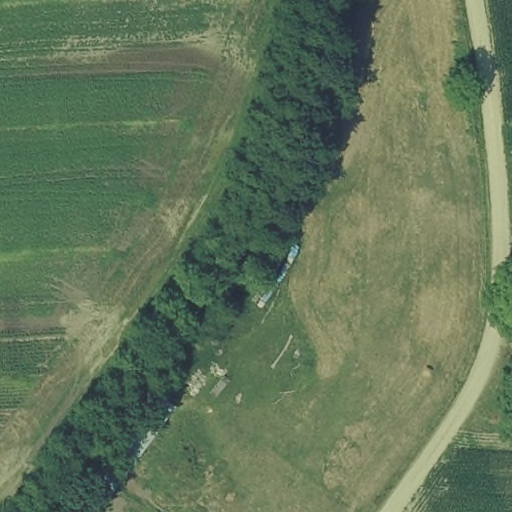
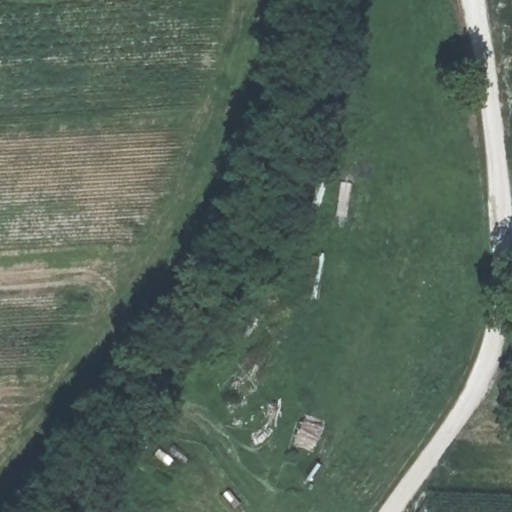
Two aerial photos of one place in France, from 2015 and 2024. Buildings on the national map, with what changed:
unchanged [(161,395),(177,409),(105,512),(78,512),(161,395)]

